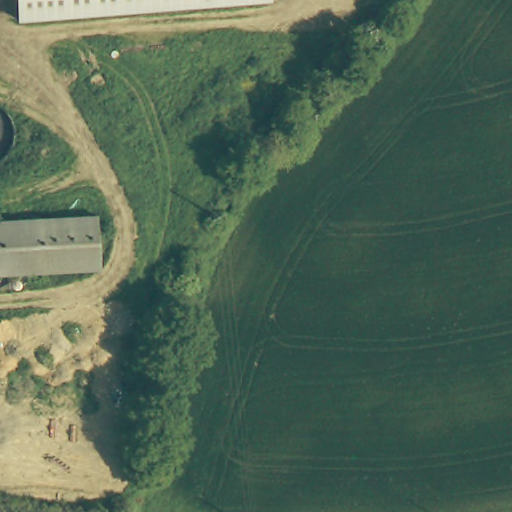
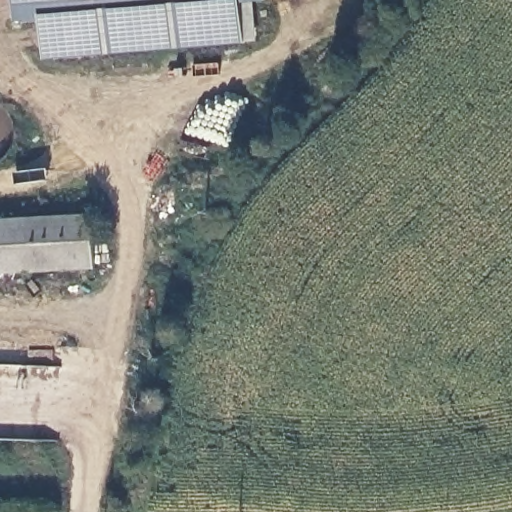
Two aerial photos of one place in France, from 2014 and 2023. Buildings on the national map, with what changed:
unchanged [(269,0),(269,2),(15,22),(14,0),(269,0)]
new [(255,3),(258,41),(44,61),(42,20),(255,3)]
unchanged [(97,265),(0,273),(0,219),(93,211),(97,265)]

